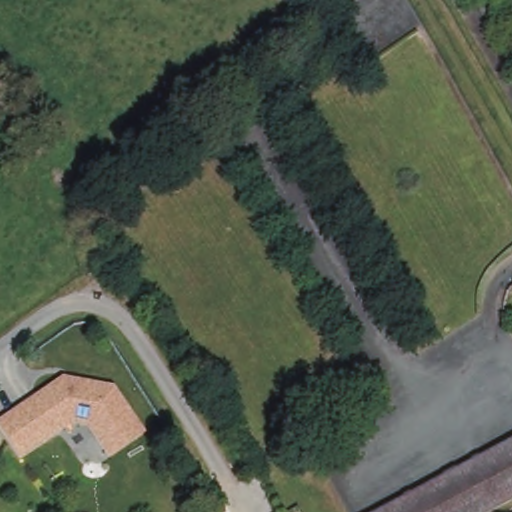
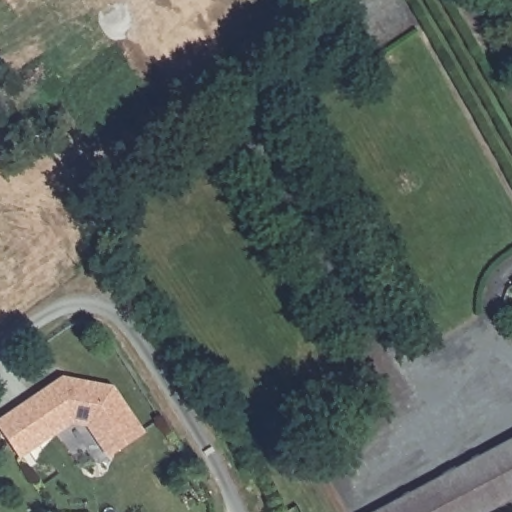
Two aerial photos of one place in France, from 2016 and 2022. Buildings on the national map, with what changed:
unchanged [(62,377),(113,387),(145,434),(107,457),(87,428),(71,424),(19,459),(0,431),(0,418),(62,377)]
unchanged [(495,452),(512,443),(512,501),(491,512),(379,512),(386,508),(495,452)]

